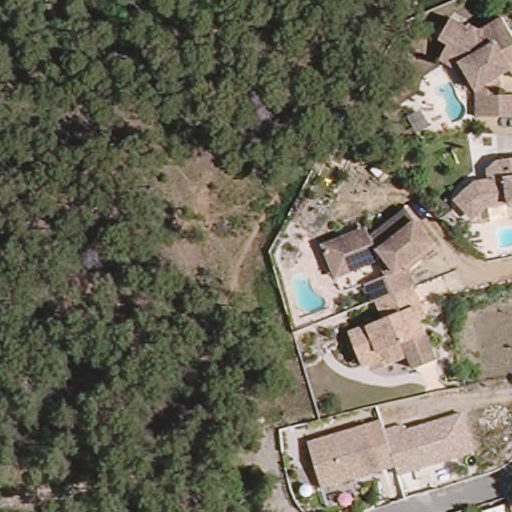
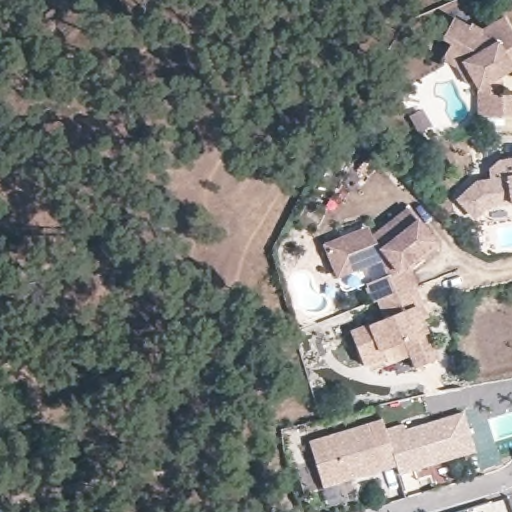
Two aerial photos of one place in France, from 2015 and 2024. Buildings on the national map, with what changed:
unchanged [(506,77),(507,92),(512,92),(512,113),(485,115),(483,88),(478,79),(472,82),(461,65),(445,54),(454,39),(445,34),(459,13),(474,23),(475,21),(486,27),(508,15),(512,21),(512,69),(504,74),(506,77)]
unchanged [(507,205),(487,208),(473,222),(455,198),(473,183),(485,181),(484,172),(497,162),(512,160),(512,210),(507,205)]
unchanged [(337,262),(328,240),(350,231),(370,223),(375,234),(412,204),(442,241),(426,253),(413,264),(420,281),(417,282),(382,296),(377,297),(370,278),(392,270),(385,255),(360,265),(340,272),(337,262)]
unchanged [(430,313),(425,316),(440,356),(418,365),(413,352),(387,362),(385,354),(367,361),(353,327),(388,314),(382,296),(417,282),(425,301),(430,313)]
unchanged [(309,441),(382,420),(385,428),(404,422),(406,429),(465,411),(477,452),(398,476),(397,468),(380,473),(369,432),(312,448),(309,441)]
unchanged [(312,448),(369,432),(380,473),(322,487),(312,448)]

